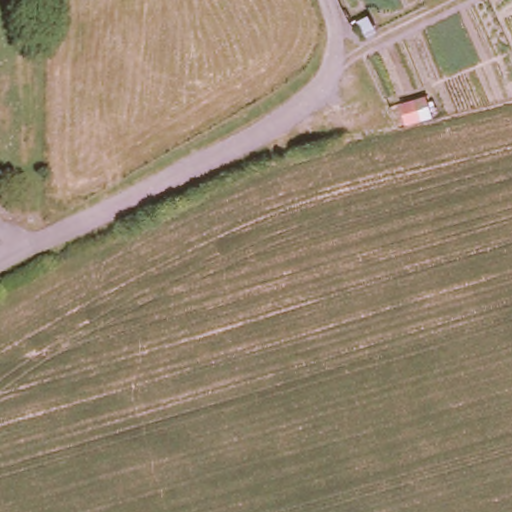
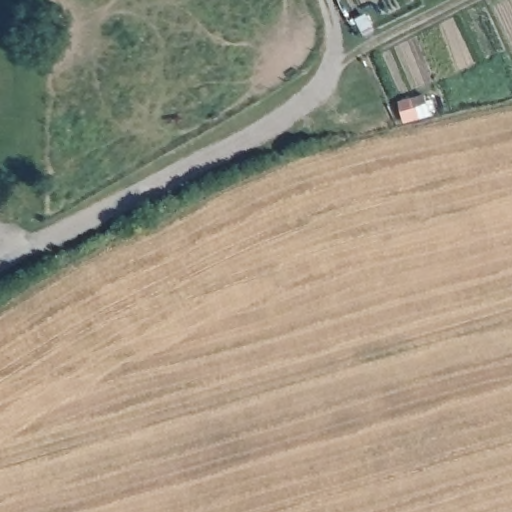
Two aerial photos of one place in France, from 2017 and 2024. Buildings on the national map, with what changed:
unchanged [(431,92),(438,117),(408,123),(404,99),(431,92)]

